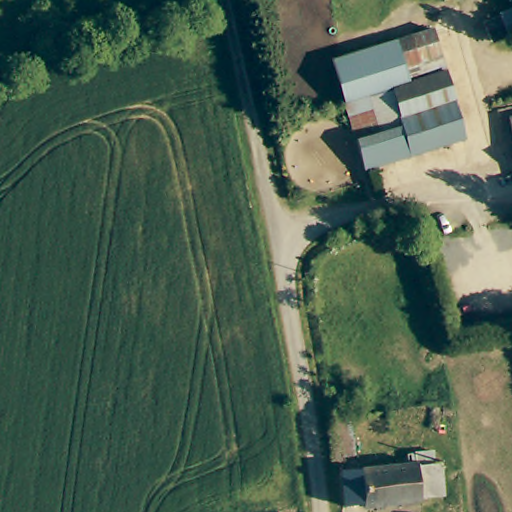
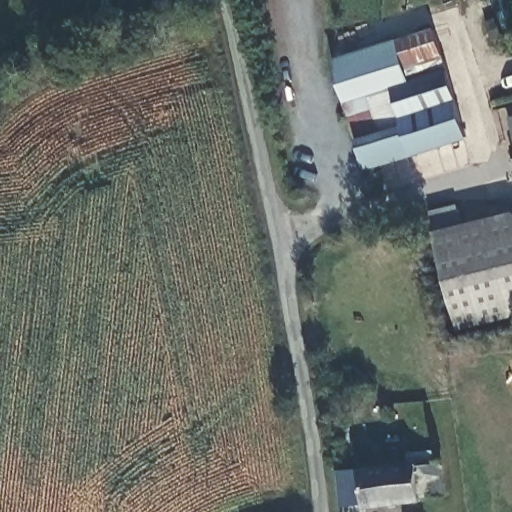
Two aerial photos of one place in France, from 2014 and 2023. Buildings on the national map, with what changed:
unchanged [(512,15),(512,39),(504,41),(497,20),(512,15)]
unchanged [(393,38),(428,26),(429,26),(442,68),(443,70),(464,134),(364,166),(343,104),(329,60),(393,38)]
new [(512,318),(458,332),(434,232),(428,210),(457,204),(463,224),(512,211),(512,318)]
unchanged [(450,491),(427,495),(427,498),(352,506),(352,501),(347,467),(405,461),(447,460),(450,491)]

